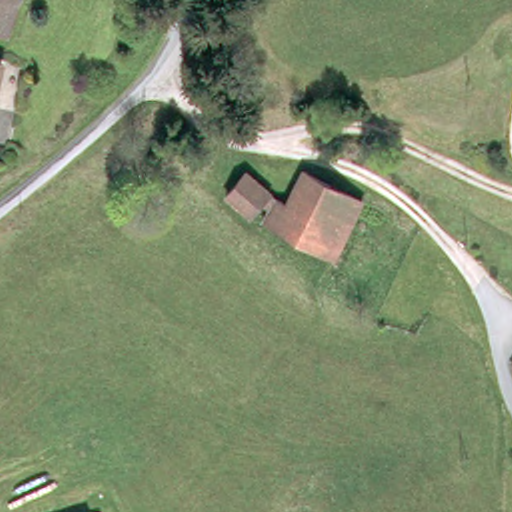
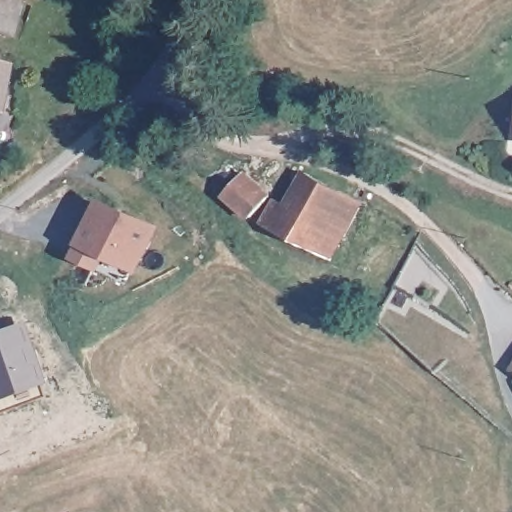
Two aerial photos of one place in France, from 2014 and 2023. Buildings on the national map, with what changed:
unchanged [(8,37),(0,34),(0,0),(16,0),(19,1),(8,37)]
unchanged [(232,204),(240,195),(228,185),(237,174),(277,204),(260,224),(232,204)]
unchanged [(295,211),(312,181),(368,209),(339,265),(270,230),(282,206),(295,211)]
new [(107,208),(158,231),(141,268),(108,253),(102,267),(84,259),(107,208)]
new [(24,327),(42,377),(40,378),(7,390),(0,372),(0,336),(24,327)]
unchanged [(512,371),(512,378),(509,376),(512,371)]
new [(7,390),(40,378),(45,393),(0,409),(0,372),(7,390)]

